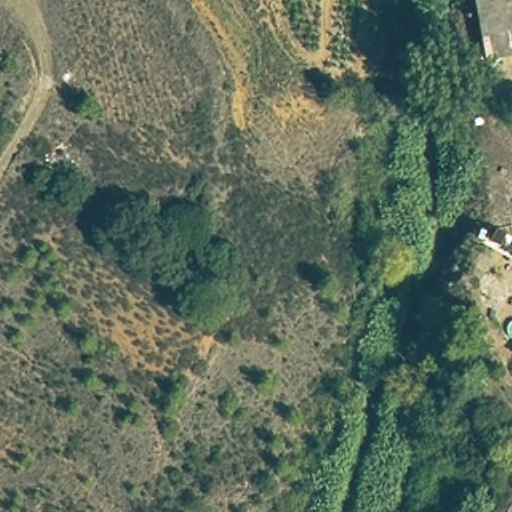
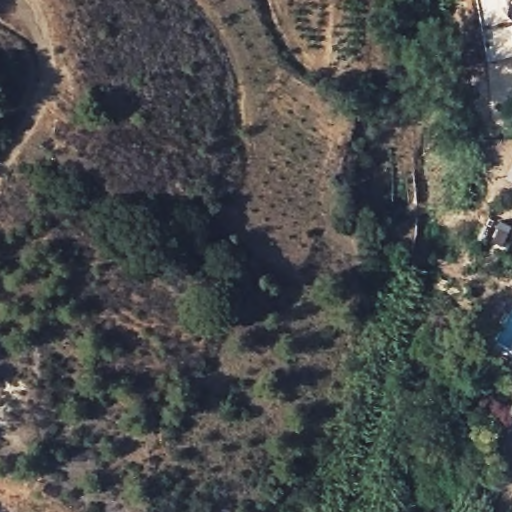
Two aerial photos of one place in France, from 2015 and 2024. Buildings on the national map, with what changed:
unchanged [(479,38),(473,0),(512,0),(512,57),(487,60),(484,38),(479,38)]

